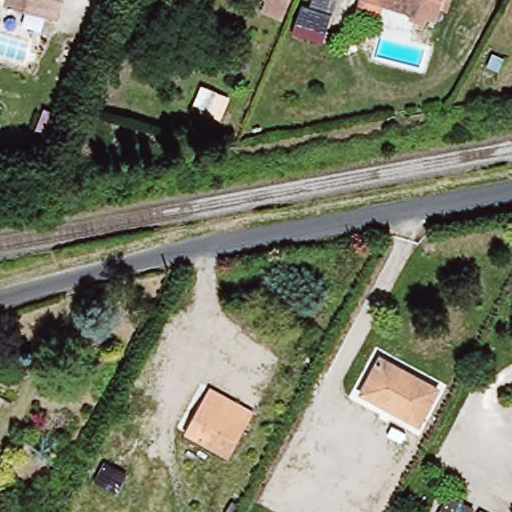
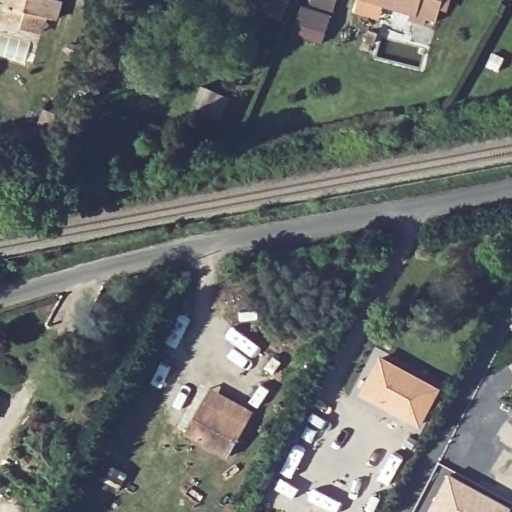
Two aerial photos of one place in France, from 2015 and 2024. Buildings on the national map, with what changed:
unchanged [(4,8),(5,0),(51,0),(48,17),(4,8)]
unchanged [(256,0),(286,0),(281,11),(256,0)]
unchanged [(288,36),(297,5),(310,7),(312,0),(333,0),(321,45),(288,36)]
unchanged [(422,24),(409,20),(407,11),(372,0),(440,0),(432,25),(422,24)]
unchanged [(436,391),(418,424),(362,395),(380,360),(436,391)]
unchanged [(249,420),(232,451),(187,428),(203,397),(249,420)]
new [(512,507),(512,508),(510,512),(434,512),(433,510),(452,474),(512,507)]

